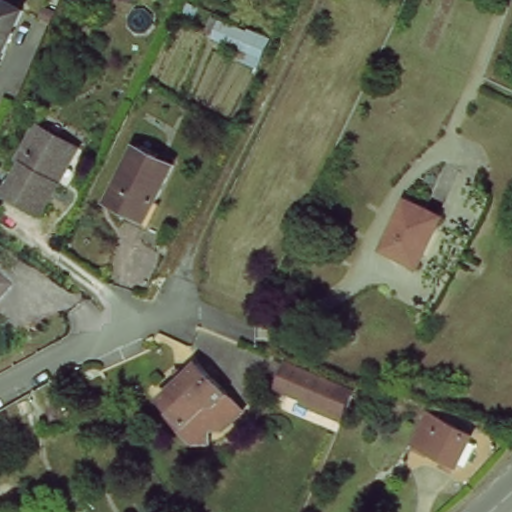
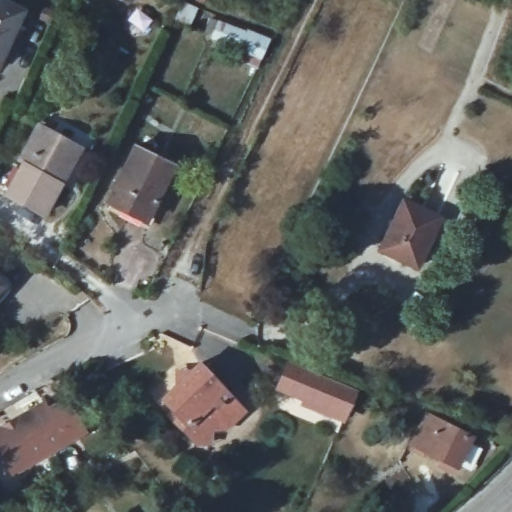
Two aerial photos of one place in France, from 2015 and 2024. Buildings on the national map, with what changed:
unchanged [(0,1),(24,14),(0,57),(0,1)]
unchanged [(274,35),(261,72),(234,65),(237,52),(206,41),(215,20),(274,35)]
unchanged [(10,196),(27,161),(22,158),(36,129),(54,137),(22,202),(10,196)]
unchanged [(54,137),(71,147),(56,175),(63,179),(44,212),(22,202),(54,137)]
unchanged [(172,162),(145,217),(106,199),(133,144),(172,162)]
unchanged [(380,251),(404,202),(423,211),(435,217),(413,267),(400,261),(380,251)]
unchanged [(0,286),(0,285),(1,286),(0,286)]
unchanged [(234,423),(225,430),(212,428),(210,442),(196,441),(171,410),(176,406),(166,393),(182,382),(183,367),(190,368),(197,368),(206,362),(241,407),(243,408),(246,413),(234,423)]
unchanged [(355,392),(346,413),(281,390),(290,365),(356,388),(355,392)]
new [(0,424),(44,398),(47,404),(66,392),(87,430),(10,476),(0,458),(0,424)]
unchanged [(475,432),(458,469),(443,462),(446,455),(416,442),(429,412),(475,432)]

